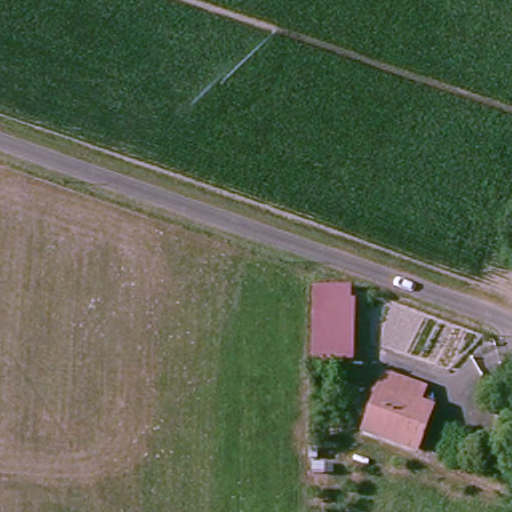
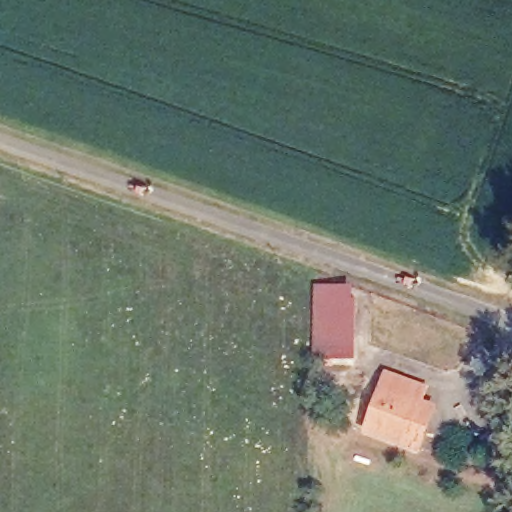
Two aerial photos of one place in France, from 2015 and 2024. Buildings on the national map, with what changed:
unchanged [(335,283),(335,297),(360,298),(359,360),(313,359),(315,282),(335,283)]
unchanged [(424,381),(423,401),(438,405),(428,449),(377,434),(387,375),(424,381)]

